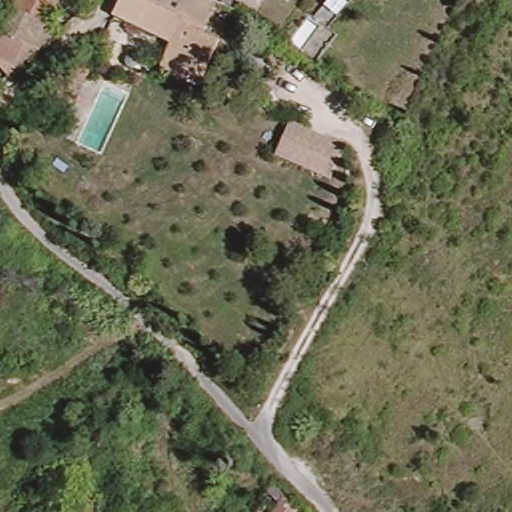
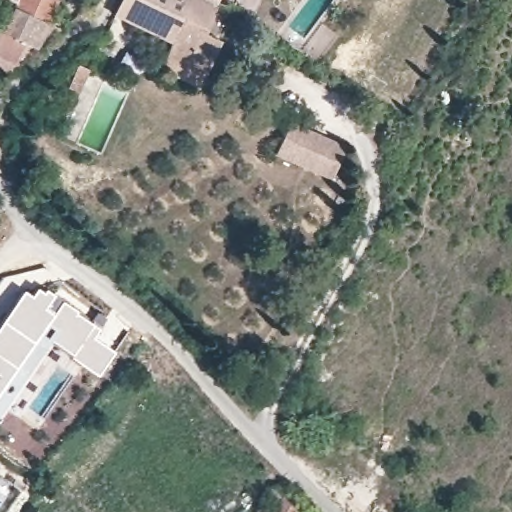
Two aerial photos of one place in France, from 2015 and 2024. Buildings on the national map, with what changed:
unchanged [(37,46),(23,39),(13,59),(0,53),(0,29),(6,31),(10,24),(2,20),(6,12),(12,15),(19,0),(56,0),(58,0),(37,46)]
unchanged [(221,42),(201,89),(161,71),(176,39),(121,13),(126,0),(216,0),(220,2),(207,36),(221,42)]
unchanged [(220,2),(216,0),(221,0),(220,2)]
unchanged [(325,30),(322,28),(310,20),(326,0),(350,0),(325,30)]
unchanged [(49,115),(61,87),(65,90),(76,67),(87,72),(77,95),(64,123),(49,115)]
unchanged [(290,125),(345,151),(329,184),(275,159),(290,125)]
new [(31,294),(37,285),(42,289),(44,287),(53,292),(54,290),(100,327),(94,336),(115,351),(97,376),(52,345),(0,418),(0,322),(24,289),(31,294)]
unchanged [(274,512),(284,497),(298,510),(297,512),(274,512)]

